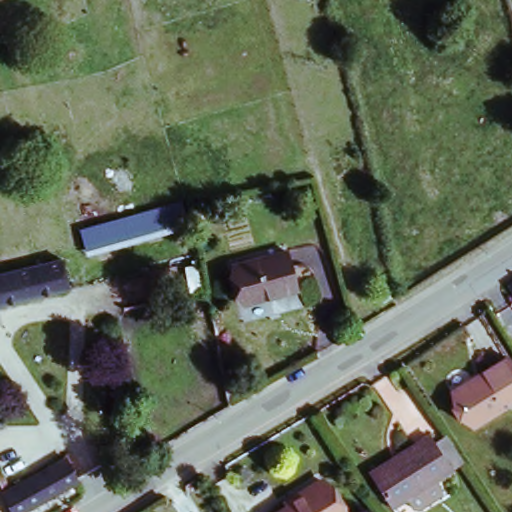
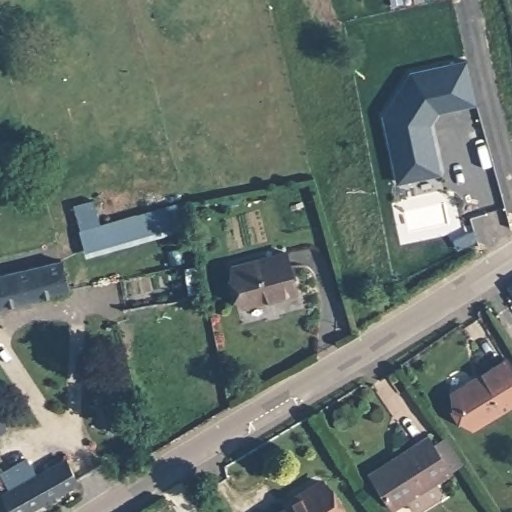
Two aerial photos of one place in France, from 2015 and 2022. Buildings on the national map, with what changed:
new [(452,63),(464,61),(473,102),(462,104),(435,110),(428,121),(438,170),(396,180),(382,115),(409,73),(452,63)]
unchanged [(177,202),(185,229),(85,258),(77,230),(177,202)]
unchanged [(278,252),(289,289),(237,304),(227,267),(278,252)]
unchanged [(68,284),(0,301),(0,271),(63,255),(68,284)]
unchanged [(127,301),(122,278),(147,272),(152,295),(127,301)]
unchanged [(508,283),(512,281),(512,289),(508,283)]
unchanged [(472,422),(452,388),(505,355),(512,367),(512,398),(472,422)]
unchanged [(0,424),(0,420),(2,423),(0,424)]
unchanged [(374,475),(431,437),(437,446),(448,440),(463,463),(453,470),(395,508),(374,475)]
unchanged [(23,512),(10,512),(2,495),(2,494),(65,461),(76,482),(23,512)]
unchanged [(289,499),(323,476),(346,512),(278,512),(292,503),(289,499)]

